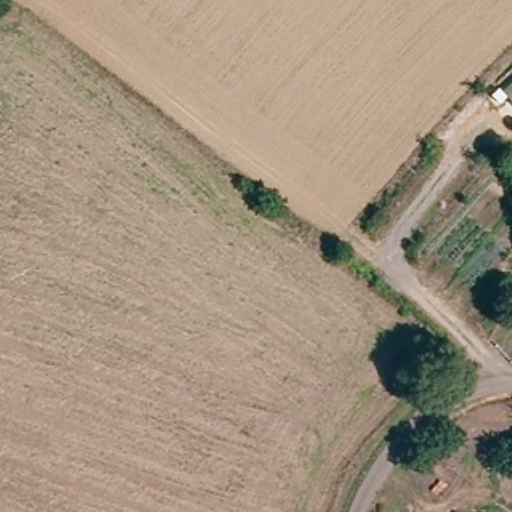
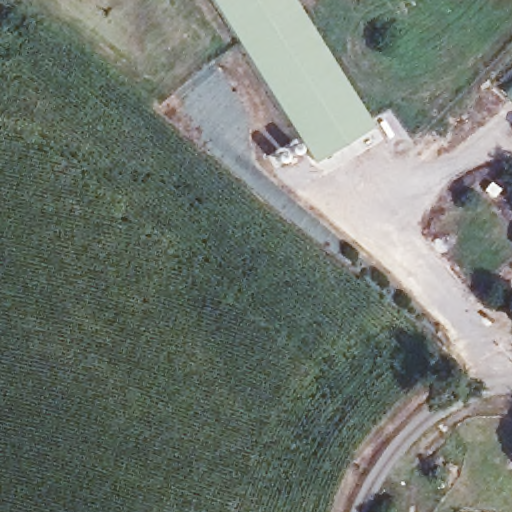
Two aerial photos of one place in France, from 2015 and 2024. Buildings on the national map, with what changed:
new [(373,128),(317,163),(214,0),(292,0),(373,128)]
unchanged [(505,88),(512,82),(512,96),(505,88)]
demolished [(369,512),(374,495),(381,488),(396,494),(388,512),(369,512)]

